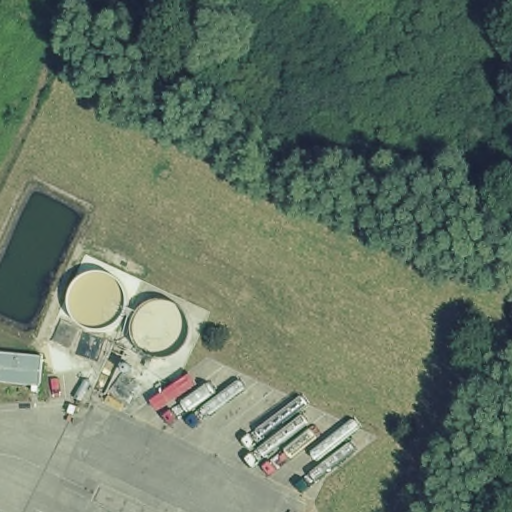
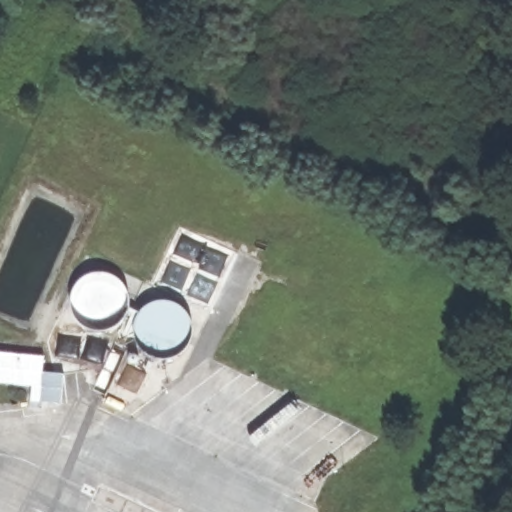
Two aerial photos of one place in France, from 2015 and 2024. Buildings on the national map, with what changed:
unchanged [(43,353),(41,382),(0,379),(0,349),(43,353)]

